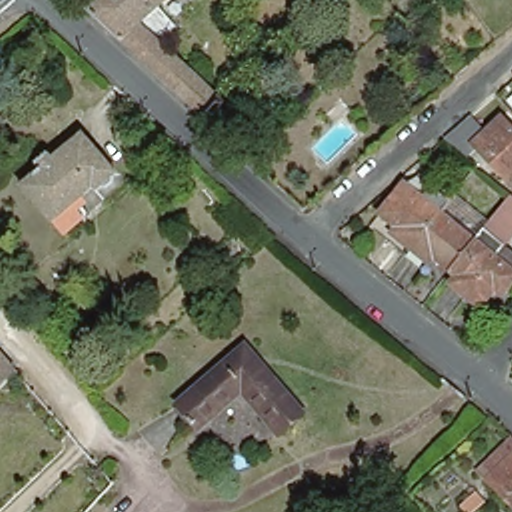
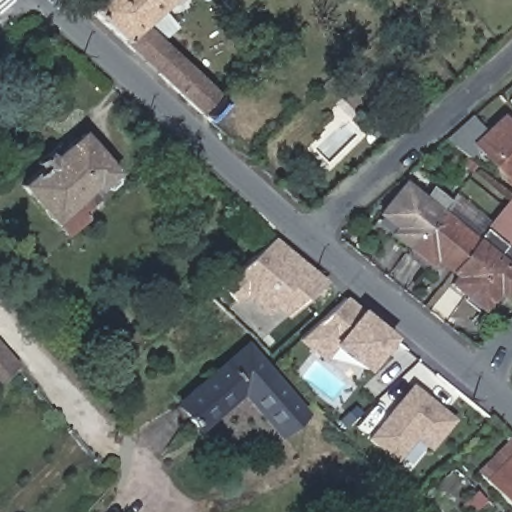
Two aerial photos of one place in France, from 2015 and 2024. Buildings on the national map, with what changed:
unchanged [(232,105),(215,121),(97,9),(107,0),(175,0),(165,9),(175,25),(162,37),(232,105)]
unchanged [(490,131),(505,117),(512,125),(512,177),(511,178),(493,159),(491,161),(477,144),(465,155),(448,142),(477,117),(490,131)]
unchanged [(62,234),(50,221),(19,185),(39,167),(34,162),(45,152),(50,157),(79,131),(115,171),(95,188),(92,185),(71,203),(82,215),(62,234)]
unchanged [(396,234),(400,229),(385,215),(408,185),(442,213),(414,249),(396,234)]
unchanged [(486,232),(508,206),(512,209),(512,228),(500,243),(506,247),(501,254),(495,256),(512,270),(512,287),(505,295),(497,291),(483,308),(455,284),(460,277),(452,272),(477,242),(486,232)]
unchanged [(437,258),(431,263),(414,249),(442,213),(477,242),(452,272),(437,258)]
new [(280,241),(328,280),(295,321),(281,309),(278,313),(257,296),(244,307),(227,288),(280,241)]
new [(352,298),(402,339),(363,374),(343,352),(328,365),(306,340),(320,327),(352,298)]
unchanged [(242,339),(301,405),(278,426),(239,383),(197,420),(195,418),(193,420),(186,413),(189,410),(177,397),(242,339)]
unchanged [(0,354),(15,372),(0,388),(0,354)]
new [(416,385),(458,423),(435,449),(421,437),(401,459),(373,435),(416,385)]
unchanged [(485,477),(493,469),(505,457),(506,454),(512,448),(512,506),(485,477)]

